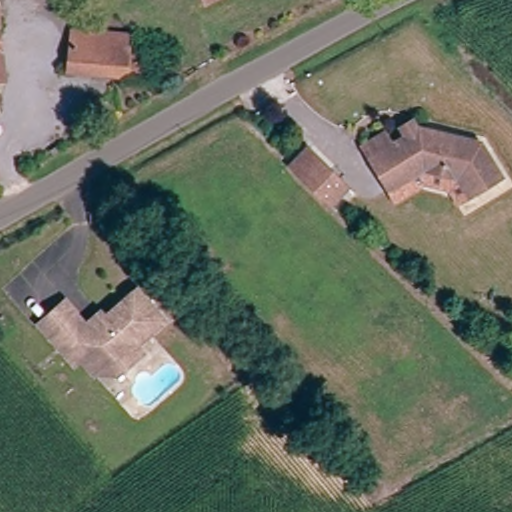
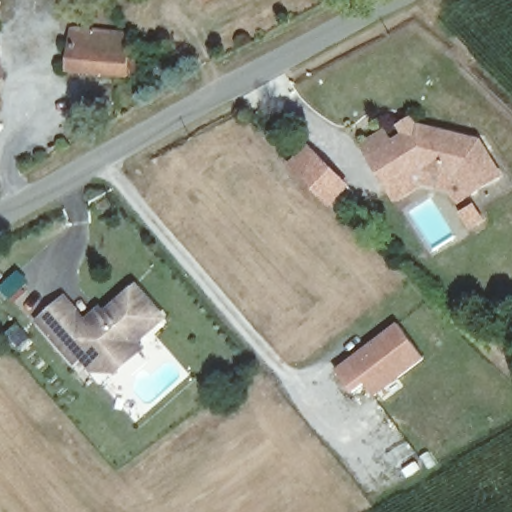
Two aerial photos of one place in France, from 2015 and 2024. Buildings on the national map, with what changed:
unchanged [(2,21),(5,77),(0,77),(0,0),(1,0),(2,21)]
unchanged [(203,7),(200,0),(216,0),(203,7)]
unchanged [(116,65),(116,72),(68,70),(68,30),(116,32),(116,46),(132,46),(131,64),(116,65)]
unchanged [(372,160),(363,146),(384,134),(393,147),(408,136),(403,127),(414,120),(420,130),(481,144),(502,177),(472,198),(459,178),(425,170),(407,181),(390,191),(381,177),(372,160)]
unchanged [(311,149),(351,188),(333,206),(294,166),(311,149)]
unchanged [(91,367),(78,351),(72,357),(38,315),(63,295),(84,318),(98,306),(102,312),(135,283),(161,315),(135,337),(140,345),(129,354),(111,369),(91,367)]
new [(426,361),(375,397),(365,385),(353,393),(337,370),(399,324),(426,361)]

